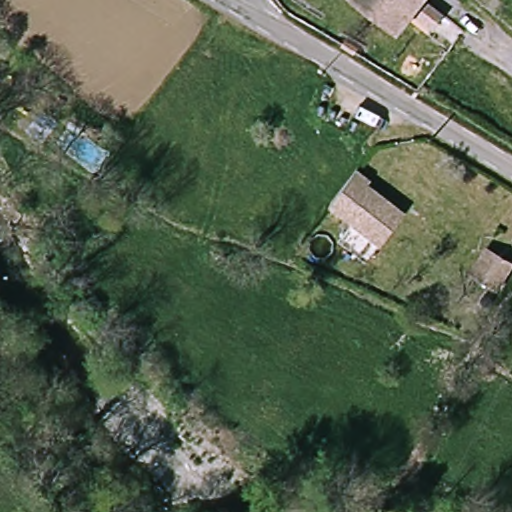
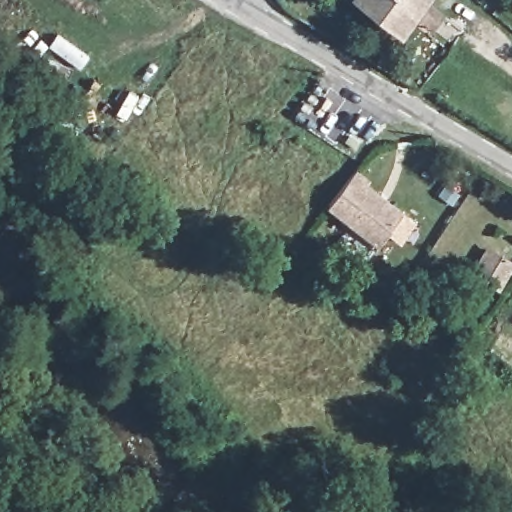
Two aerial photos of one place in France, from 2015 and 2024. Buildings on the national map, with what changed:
unchanged [(439,32),(415,14),(397,34),(352,0),(432,0),(453,17),(439,32)]
unchanged [(369,178),(365,182),(402,210),(377,241),(326,204),(326,203),(355,168),(369,178)]
unchanged [(512,258),(512,280),(504,295),(470,273),(488,245),(512,258)]

